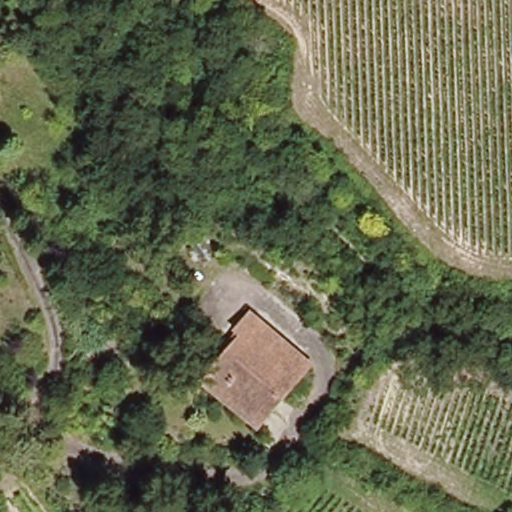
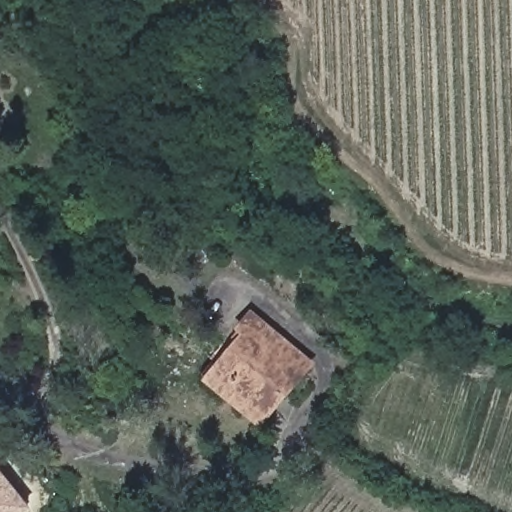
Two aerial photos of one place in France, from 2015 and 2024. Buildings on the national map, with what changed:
unchanged [(251,320),(309,362),(274,408),(217,365),(251,320)]
unchanged [(264,420),(207,379),(217,365),(274,408),(264,420)]
new [(31,508),(27,512),(0,512),(0,470),(31,508)]

